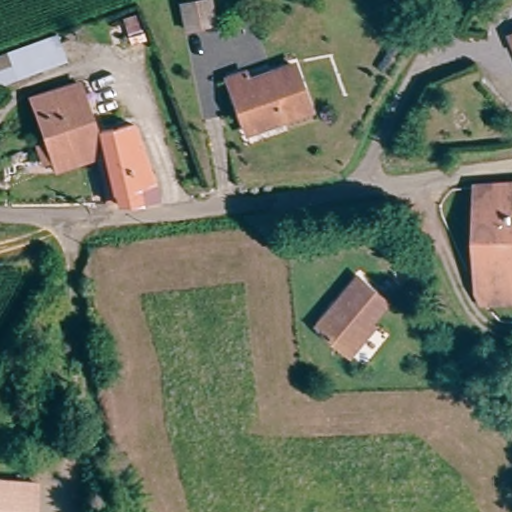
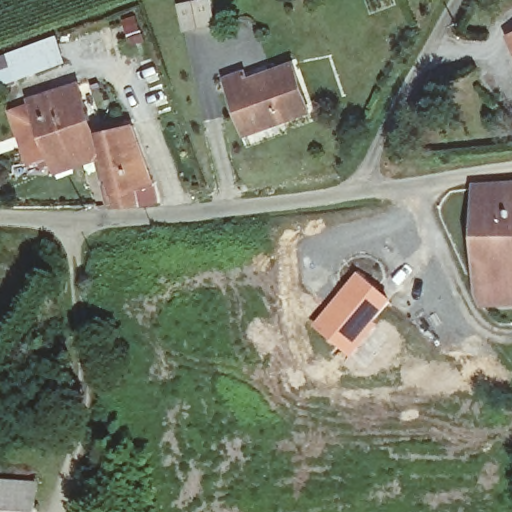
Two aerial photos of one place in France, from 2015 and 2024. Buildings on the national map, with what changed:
unchanged [(199,24),(193,0),(224,0),(228,18),(199,24)]
unchanged [(512,27),(512,45),(505,30),(512,27)]
unchanged [(70,57),(15,79),(11,66),(0,70),(0,53),(59,31),(70,57)]
unchanged [(304,109),(240,134),(220,79),(238,73),(244,88),(272,76),(270,72),(288,65),(304,109)]
unchanged [(85,121),(80,124),(88,148),(47,163),(35,168),(28,149),(40,145),(24,100),(71,83),(85,121)]
unchanged [(149,179),(129,187),(135,204),(133,204),(124,204),(101,143),(97,131),(127,120),(149,179)]
unchanged [(124,204),(109,204),(92,159),(52,173),(47,163),(88,148),(101,143),(124,204)]
unchanged [(469,186),(512,188),(512,303),(468,300),(469,186)]
unchanged [(336,348),(310,324),(351,275),(380,299),(362,320),(367,324),(354,339),(343,353),(336,348)]
unchanged [(30,470),(30,481),(27,512),(0,512),(0,468),(30,470)]

